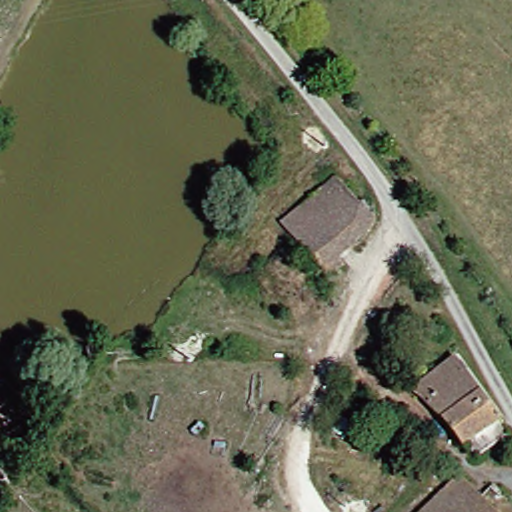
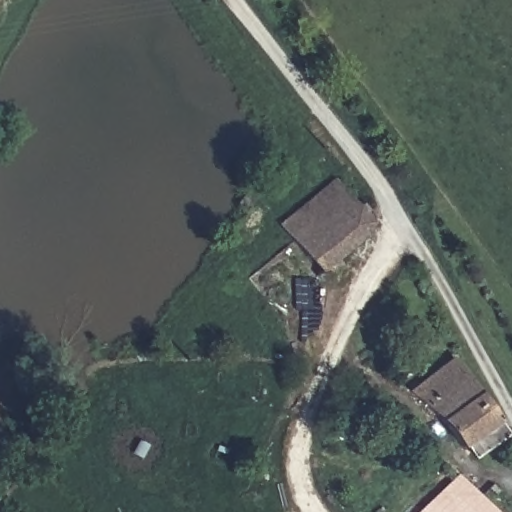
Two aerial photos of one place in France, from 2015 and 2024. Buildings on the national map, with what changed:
unchanged [(340,164),(383,215),(349,246),(353,254),(305,299),(267,258),(259,251),(253,246),(269,230),(340,164)]
unchanged [(400,391),(449,354),(487,422),(485,427),(490,435),(457,465),(448,453),(400,391)]
unchanged [(482,512),(415,512),(454,479),(482,512)]

